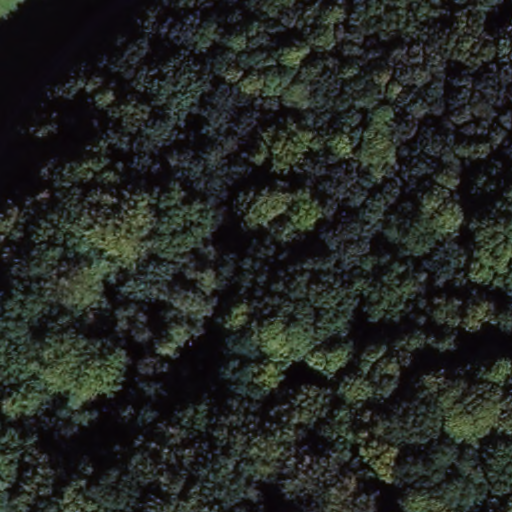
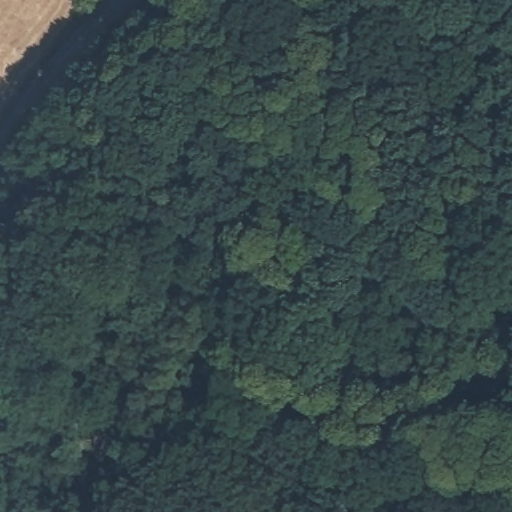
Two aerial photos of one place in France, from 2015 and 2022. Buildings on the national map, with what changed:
[]

